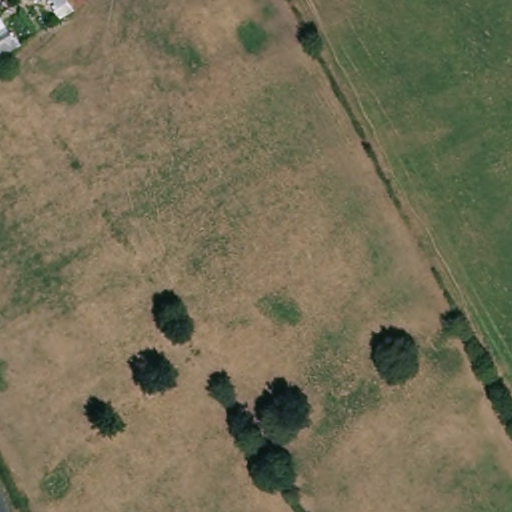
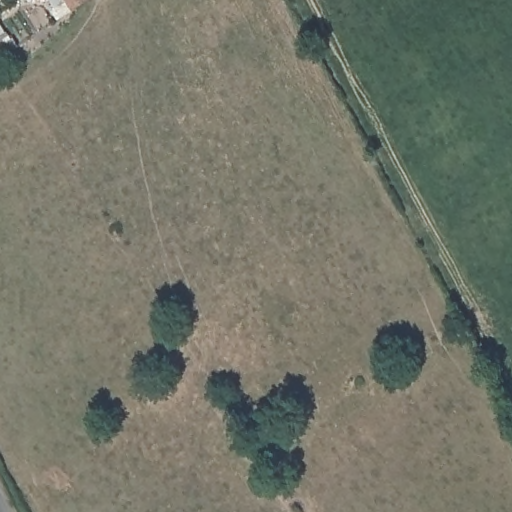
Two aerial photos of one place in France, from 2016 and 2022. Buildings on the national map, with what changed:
unchanged [(65,0),(87,0),(72,10),(65,0)]
unchanged [(0,16),(15,40),(19,37),(25,50),(2,69),(0,65),(0,16)]

